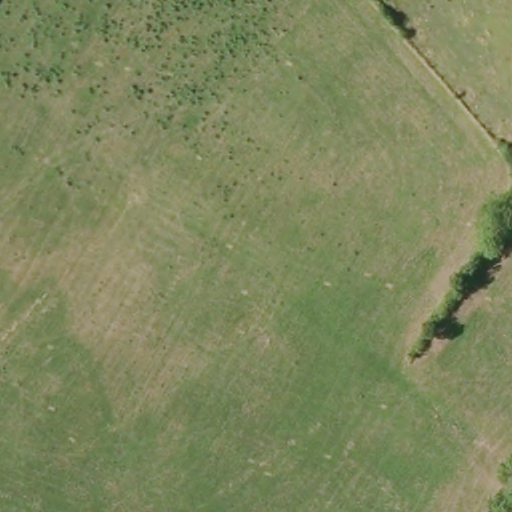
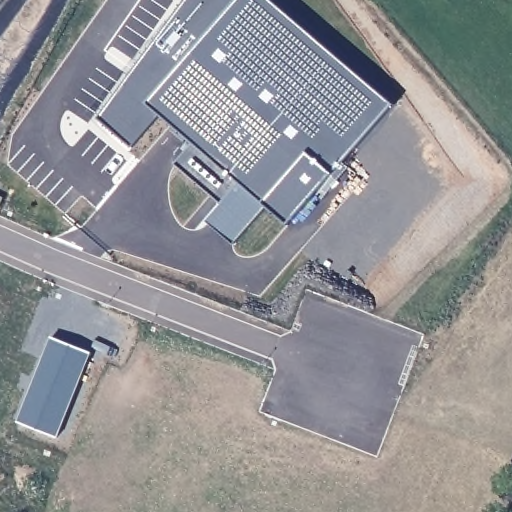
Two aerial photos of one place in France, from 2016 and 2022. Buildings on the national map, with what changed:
new [(286,225),(265,209),(234,247),(205,222),(220,203),(175,164),(190,142),(160,115),(132,148),(97,120),(185,0),(266,0),(392,105),(286,225)]

